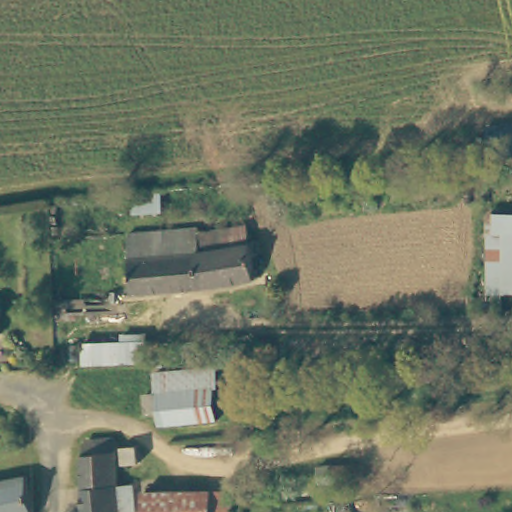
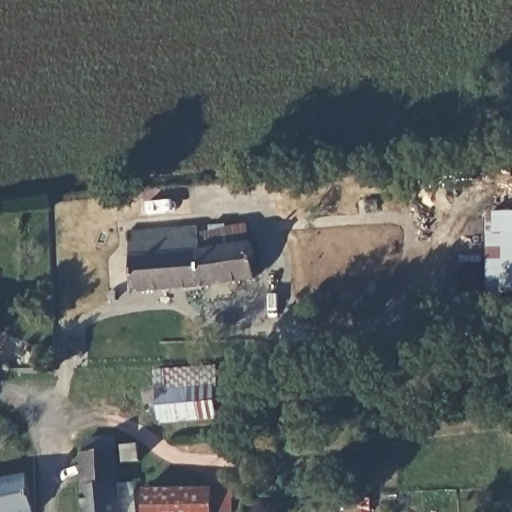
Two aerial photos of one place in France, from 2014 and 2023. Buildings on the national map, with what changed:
unchanged [(476,128),(507,125),(512,157),(480,160),(476,128)]
unchanged [(512,216),(512,292),(498,293),(494,217),(512,216)]
unchanged [(127,237),(194,230),(198,252),(249,246),(251,282),(201,291),(127,293),(127,237)]
unchanged [(122,343),(122,331),(150,332),(147,363),(87,366),(85,342),(122,343)]
unchanged [(161,372),(191,369),(212,367),(216,418),(195,420),(162,422),(161,408),(147,410),(146,392),(162,391),(161,372)]
unchanged [(85,457),(89,456),(89,443),(119,441),(119,487),(88,490),(85,457)]
unchanged [(129,463),(126,446),(129,447),(143,447),(144,463),(129,463)]
unchanged [(26,477),(31,512),(0,512),(0,483),(26,477)]
unchanged [(132,486),(134,512),(91,512),(88,490),(119,487),(132,486)]
unchanged [(230,491),(237,512),(211,512),(172,512),(172,493),(230,491)]
unchanged [(172,493),(172,512),(145,512),(145,494),(172,493)]

